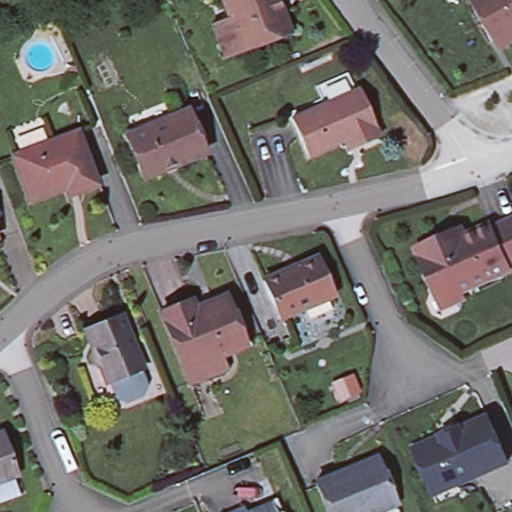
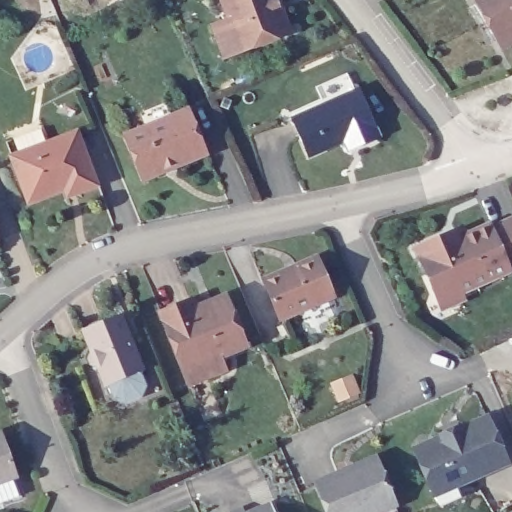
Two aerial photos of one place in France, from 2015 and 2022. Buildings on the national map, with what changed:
unchanged [(230,14),(225,0),(278,0),(291,35),(244,52),(228,59),(217,27),(227,24),(225,16),(230,14)]
unchanged [(512,0),(512,43),(503,48),(495,34),(487,39),(472,15),(480,10),(475,0),(512,0)]
unchanged [(345,141),(308,157),(292,119),(359,89),(380,138),(359,147),(350,151),(345,141)]
unchanged [(150,127),(174,117),(190,111),(207,155),(145,180),(127,136),(150,127)]
unchanged [(62,190),(26,205),(10,160),(48,145),(74,135),(95,187),(75,195),(65,199),(62,190)]
unchanged [(417,250),(446,237),(462,230),(465,237),(490,226),(491,230),(506,224),(512,221),(512,265),(507,267),(509,270),(460,291),(463,298),(443,307),(440,300),(438,295),(420,256),(417,250)]
unchanged [(312,259),(330,297),(277,319),(260,280),(312,259)]
unchanged [(185,370),(161,313),(182,305),(192,300),(192,302),(212,295),(215,302),(227,298),(246,346),(220,356),(225,370),(191,384),(185,370)]
unchanged [(133,387),(121,392),(111,392),(105,378),(101,380),(94,362),(87,360),(85,353),(88,347),(80,326),(117,311),(138,365),(134,367),(140,380),(133,387)]
unchanged [(437,501),(433,495),(431,488),(414,448),(438,438),(438,435),(442,434),(448,436),(455,433),(457,427),(460,425),(462,427),(487,416),(507,462),(457,484),(460,491),(437,501)]
unchanged [(0,482),(0,434),(2,433),(18,476),(0,482)]
unchanged [(377,458),(397,506),(382,512),(328,512),(316,483),(377,458)]
unchanged [(272,506),(274,512),(259,512),(272,506)]
unchanged [(245,511),(245,512),(242,512),(245,511)]

